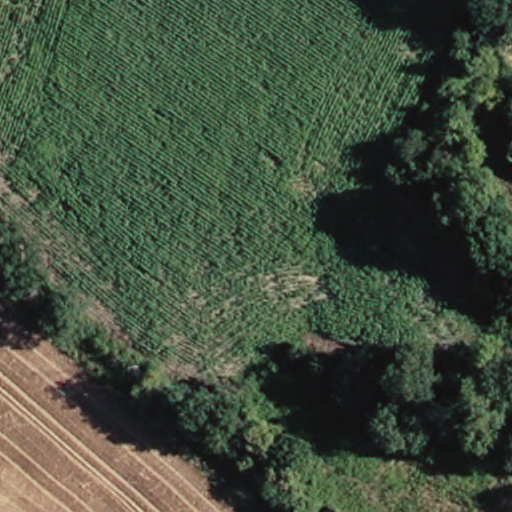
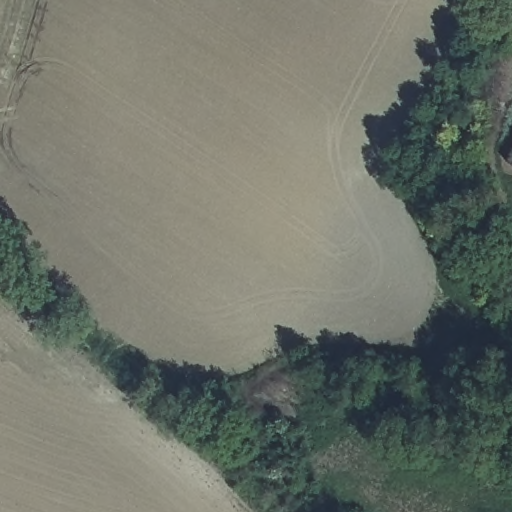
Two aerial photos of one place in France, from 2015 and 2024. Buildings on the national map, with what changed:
unchanged [(512,142),(512,169),(500,162),(512,142)]

